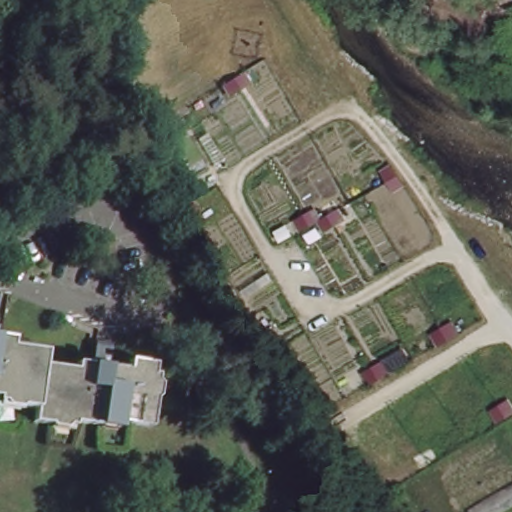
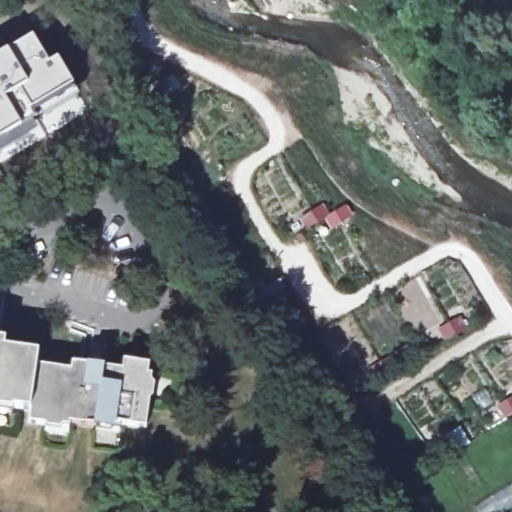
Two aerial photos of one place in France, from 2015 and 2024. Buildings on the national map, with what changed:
new [(50,65),(58,61),(75,94),(36,117),(39,122),(3,147),(0,149),(0,56),(32,37),(50,65)]
unchanged [(93,417),(92,423),(40,418),(39,423),(21,422),(22,406),(3,406),(4,399),(0,399),(0,336),(10,337),(10,341),(40,342),(40,357),(73,360),(73,356),(92,357),(92,342),(111,343),(110,363),(126,365),(126,355),(151,357),(153,357),(150,423),(93,417)]

